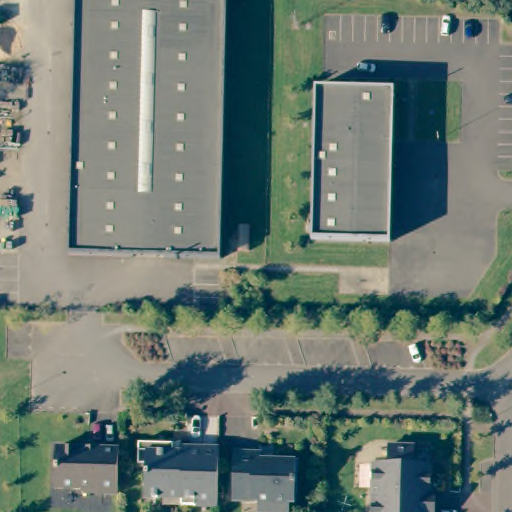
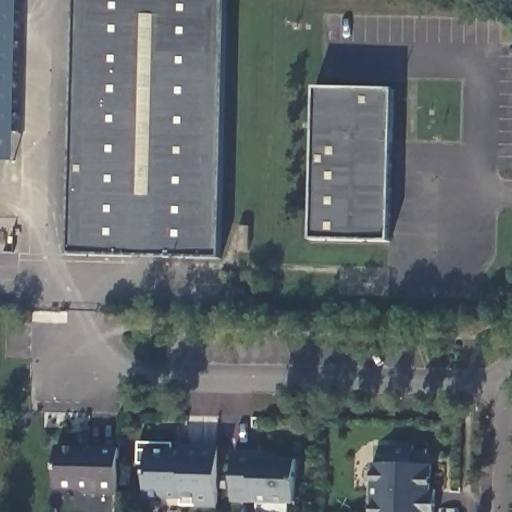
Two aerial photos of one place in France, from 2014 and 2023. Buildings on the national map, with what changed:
new [(0,0),(18,0),(14,161),(0,161),(0,0)]
unchanged [(74,0),(226,0),(222,258),(166,257),(133,256),(70,255),(74,0)]
unchanged [(392,87),(390,239),(312,239),(314,86),(392,87)]
unchanged [(165,498),(147,498),(148,463),(140,463),(140,443),(173,444),(184,445),(183,448),(220,448),(219,507),(183,506),(165,506),(165,498)]
unchanged [(84,490),(81,485),(58,485),(58,445),(120,445),(119,490),(84,490)]
unchanged [(371,464),(387,465),(388,445),(413,446),(413,453),(424,453),(423,464),(431,464),(430,490),(435,490),(435,512),(370,512),(371,464)]
unchanged [(274,455),(273,461),(296,461),(295,503),(290,503),(290,512),(260,512),(260,502),(234,502),(235,454),(259,455),(274,455)]

